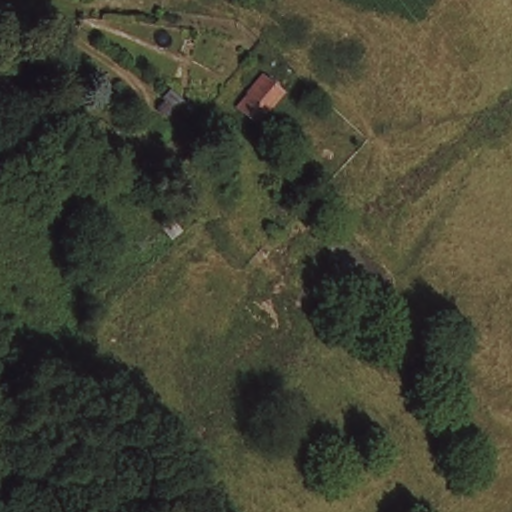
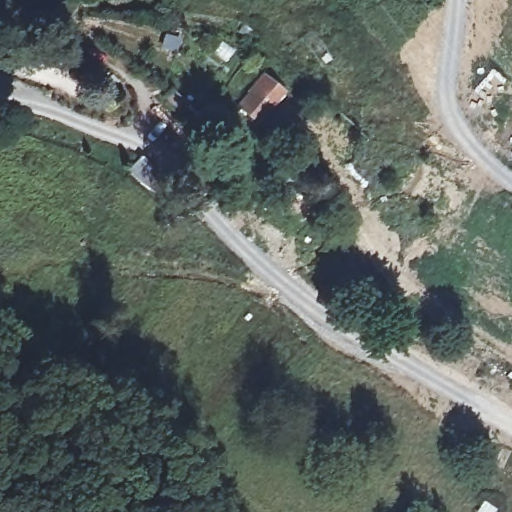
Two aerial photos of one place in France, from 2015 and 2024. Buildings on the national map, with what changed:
unchanged [(234,106),(262,73),(284,94),(257,126),(234,106)]
unchanged [(156,224),(169,213),(185,231),(175,241),(156,224)]

